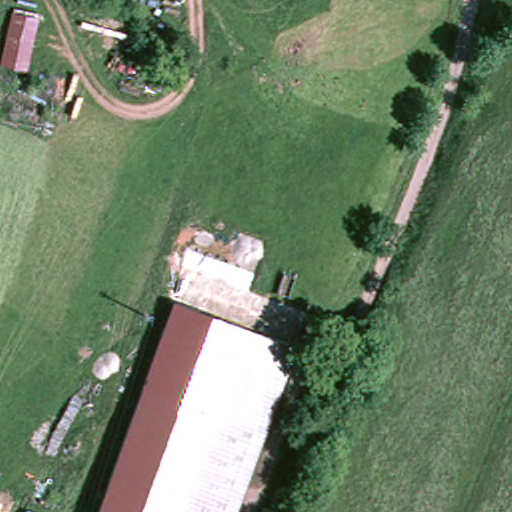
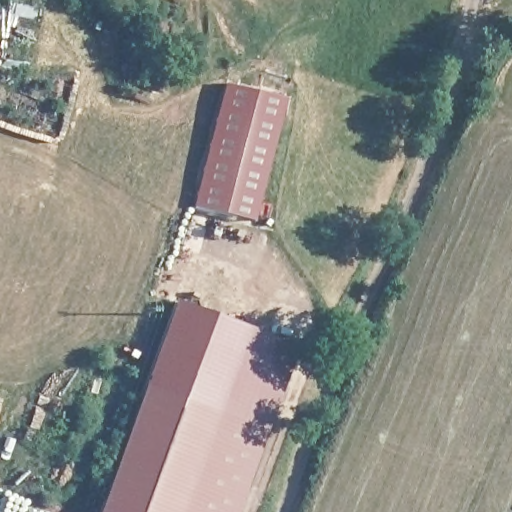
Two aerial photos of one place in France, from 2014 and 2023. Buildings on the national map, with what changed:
unchanged [(27,74),(0,68),(0,60),(9,9),(39,17),(27,74)]
new [(253,220),(194,206),(224,85),(283,100),(253,220)]
unchanged [(171,303),(289,344),(264,427),(159,393),(143,388),(171,303)]
unchanged [(237,512),(103,512),(143,388),(264,427),(237,512)]

